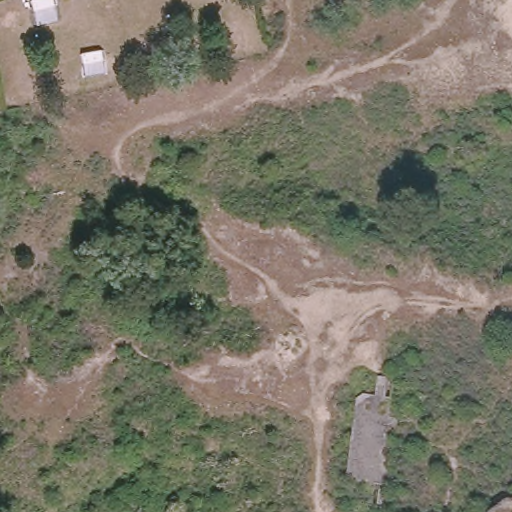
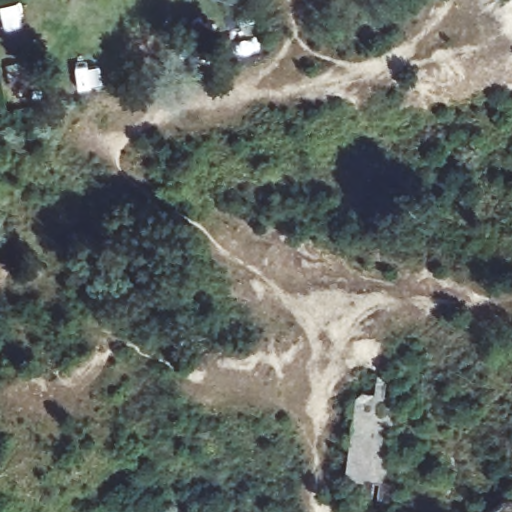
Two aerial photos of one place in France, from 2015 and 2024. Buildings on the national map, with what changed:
unchanged [(356,393),(374,394),(377,371),(404,376),(384,511),(368,507),(369,482),(348,474),(356,393)]
unchanged [(496,506),(509,497),(512,496),(512,512),(491,512),(496,506)]

